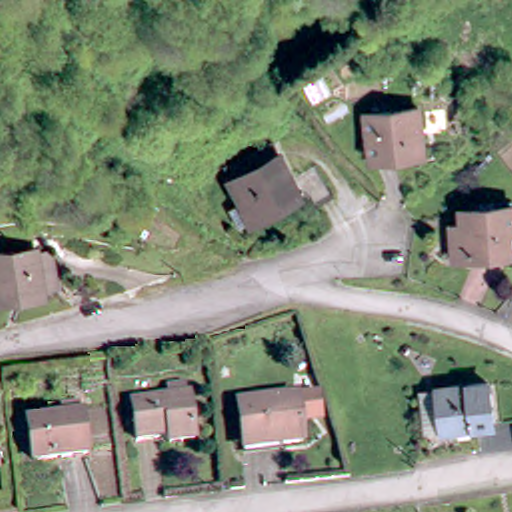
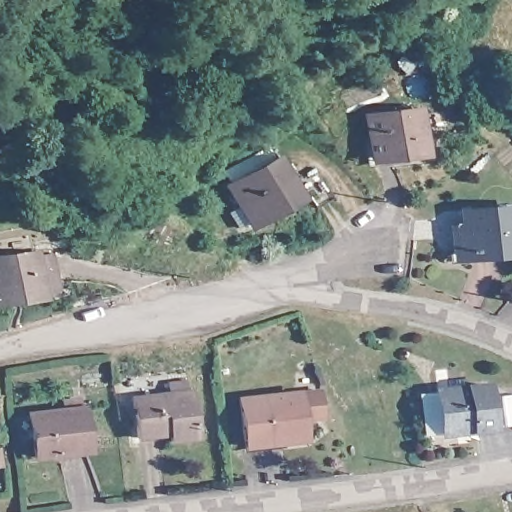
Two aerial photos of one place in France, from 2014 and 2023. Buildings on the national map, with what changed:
unchanged [(410,104),(416,150),(364,155),(358,110),(410,104)]
unchanged [(282,211),(245,231),(219,182),(252,164),(253,166),(266,160),(287,195),(292,205),(282,211)]
unchanged [(307,177),(327,204),(311,215),(291,189),(307,177)]
unchanged [(512,212),(512,226),(507,226),(509,247),(471,252),(470,248),(453,250),(450,225),(470,221),(468,208),(511,204),(512,212)]
unchanged [(32,254),(45,252),(49,286),(35,287),(36,292),(0,296),(0,256),(32,251),(32,254)]
unchanged [(167,440),(165,431),(134,435),(130,396),(165,392),(164,379),(183,377),(184,390),(188,390),(191,422),(192,436),(167,440)]
unchanged [(423,388),(440,385),(491,378),(497,420),(446,428),(429,430),(423,388)]
unchanged [(241,436),(237,394),(295,387),(317,385),(320,411),(298,414),(301,434),(280,436),(242,441),(241,436)]
unchanged [(60,413),(60,405),(75,403),(76,412),(77,412),(81,452),(27,457),(23,417),(60,413)]

